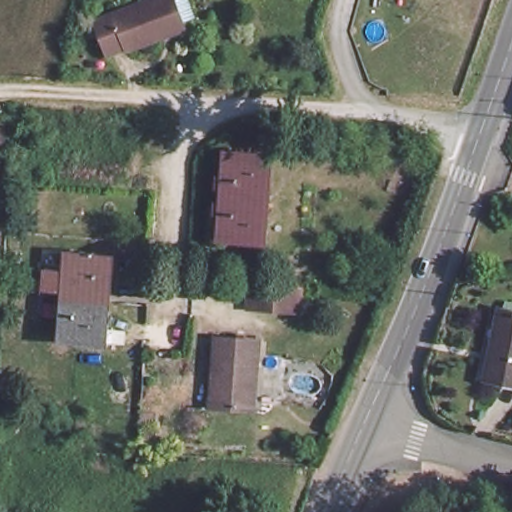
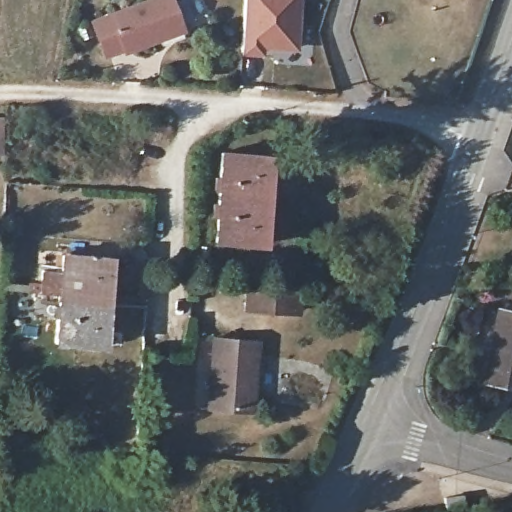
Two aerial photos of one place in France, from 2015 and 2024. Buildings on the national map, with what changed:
unchanged [(154,37),(122,48),(119,42),(99,51),(87,19),(138,0),(184,0),(190,14),(167,24),(151,30),(154,37)]
new [(267,50),(267,57),(245,57),(247,0),(305,0),(302,51),(267,50)]
new [(6,116),(5,156),(0,156),(0,116),(6,116)]
unchanged [(224,153),(271,156),(263,239),(216,236),(224,153)]
unchanged [(63,256),(110,258),(103,345),(56,341),(63,256)]
unchanged [(246,286),(296,289),(296,306),(246,304),(246,286)]
unchanged [(512,309),(512,381),(482,374),(497,305),(512,309)]
unchanged [(213,335),(256,338),(251,403),(251,409),(207,406),(208,401),(213,335)]

